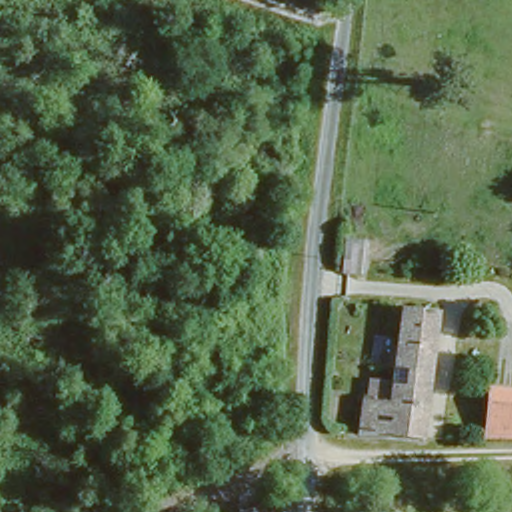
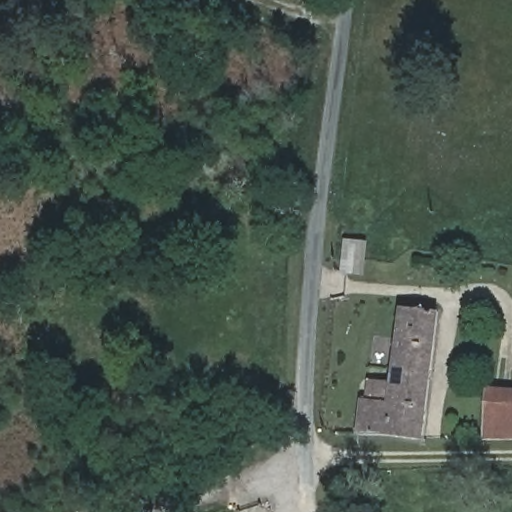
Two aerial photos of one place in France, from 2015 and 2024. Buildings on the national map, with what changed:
unchanged [(366,239),(362,270),(339,269),(343,237),(366,239)]
unchanged [(439,309),(432,362),(422,437),(392,435),(355,432),(360,397),(367,397),(370,380),(391,383),(399,304),(439,309)]
unchanged [(512,385),(512,438),(485,437),(489,384),(512,385)]

